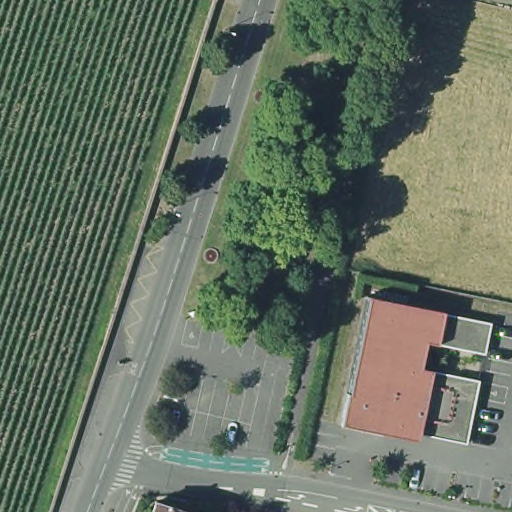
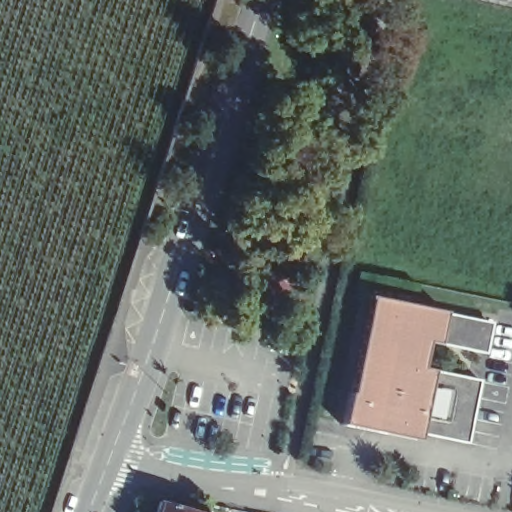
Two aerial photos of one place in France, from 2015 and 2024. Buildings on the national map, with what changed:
unchanged [(452,309),(451,315),(491,324),(486,354),(444,346),(443,352),(431,351),(430,363),(440,365),(440,371),(480,382),(468,443),(425,434),(423,447),(337,430),(366,291),(452,309)]
unchanged [(215,510),(215,512),(151,512),(158,491),(215,510)]

